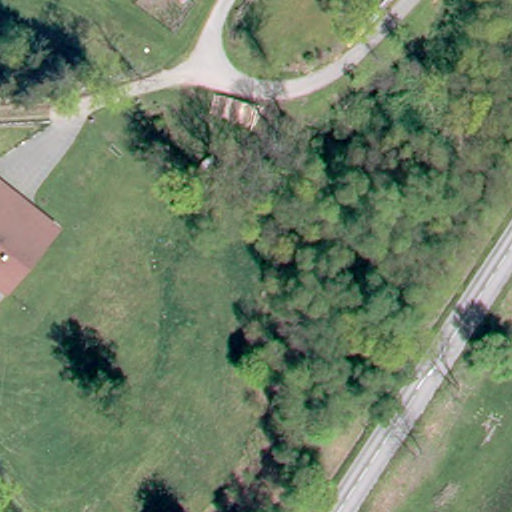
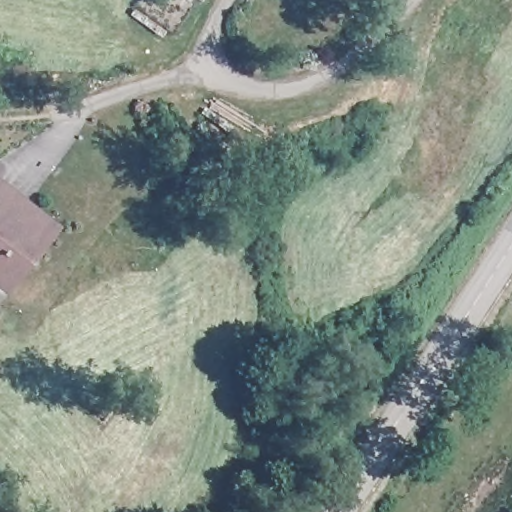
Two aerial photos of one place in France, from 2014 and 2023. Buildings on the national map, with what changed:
unchanged [(10,300),(0,292),(0,182),(64,229),(10,300)]

